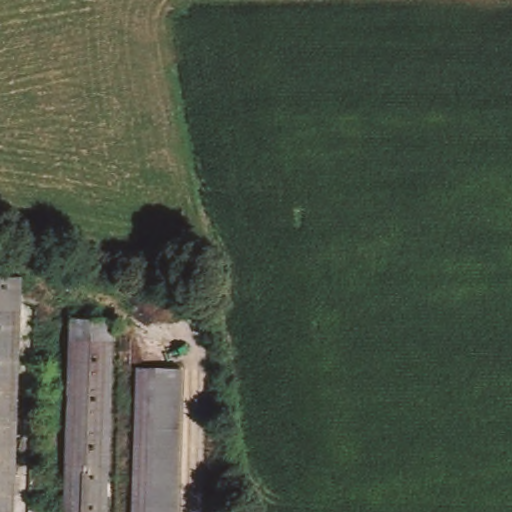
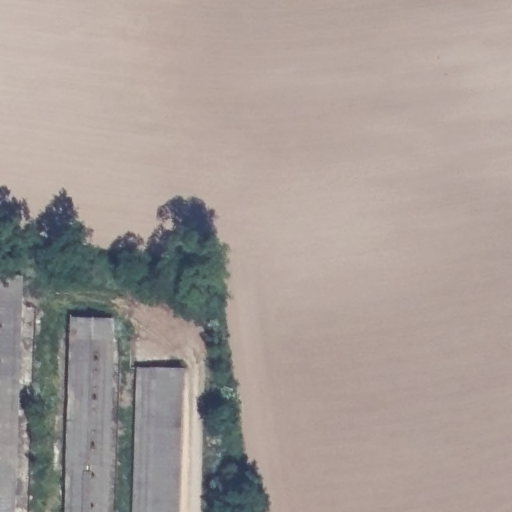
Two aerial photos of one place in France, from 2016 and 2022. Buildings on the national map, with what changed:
unchanged [(18,309),(6,512),(0,512),(0,308),(18,309)]
unchanged [(67,455),(74,328),(116,330),(105,512),(63,512),(67,455)]
unchanged [(141,363),(160,363),(153,512),(133,512),(141,363)]
unchanged [(160,363),(189,365),(182,512),(153,512),(160,363)]

